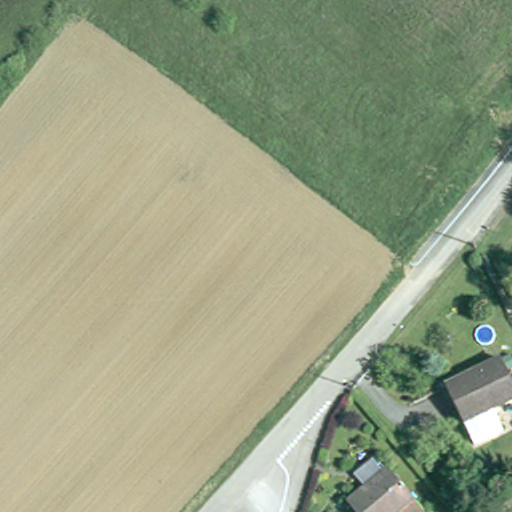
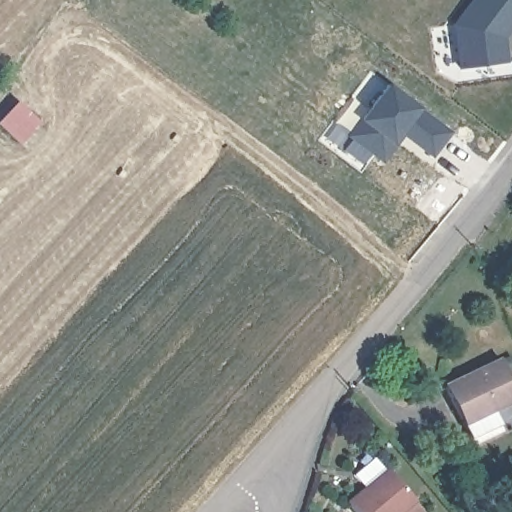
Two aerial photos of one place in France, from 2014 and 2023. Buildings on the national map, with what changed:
new [(451,22),(468,0),(512,0),(512,24),(503,36),(504,61),(457,67),(451,22)]
new [(359,121),(357,119),(384,82),(419,105),(417,109),(448,128),(430,154),(400,132),(382,159),(348,135),(359,121)]
new [(38,123),(18,145),(0,127),(0,120),(16,102),(38,123)]
unchanged [(512,385),(512,393),(490,404),(502,426),(473,441),(443,383),(498,356),(512,385)]
unchanged [(403,512),(355,512),(351,508),(389,476),(413,504),(403,512)]

